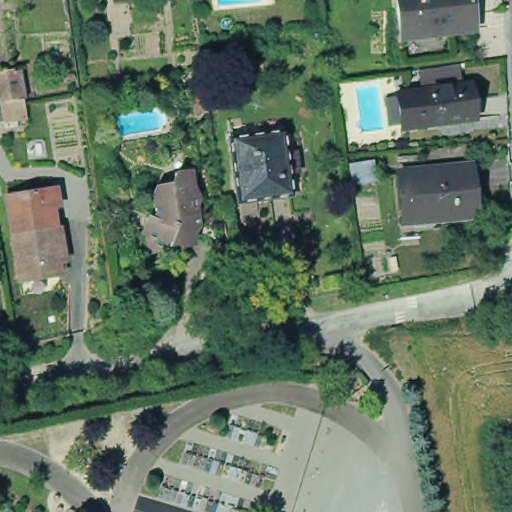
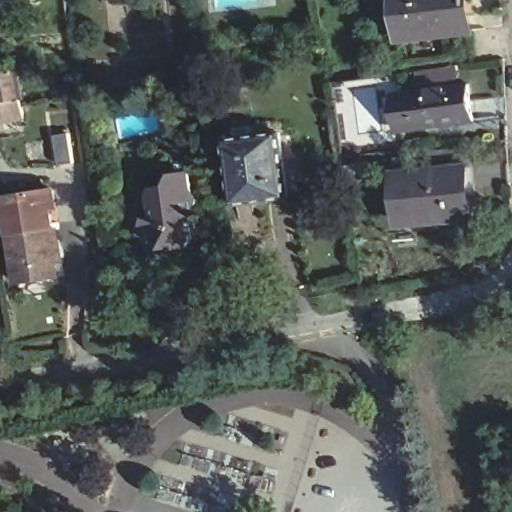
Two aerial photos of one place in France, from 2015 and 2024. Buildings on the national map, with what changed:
unchanged [(466,27),(398,35),(394,0),(467,0),(463,1),(466,27)]
unchanged [(2,126),(0,118),(0,78),(15,76),(20,106),(21,105),(24,123),(2,126)]
unchanged [(398,95),(405,93),(473,85),(477,121),(451,124),(451,122),(410,128),(403,129),(398,95)]
unchanged [(288,198),(233,204),(225,140),(280,133),(288,198)]
unchanged [(470,214),(400,220),(395,169),(466,163),(470,214)]
unchanged [(192,183),(192,185),(193,186),(197,193),(197,194),(197,196),(194,202),(196,224),(189,225),(190,230),(190,232),(190,234),(190,237),(189,239),(187,241),(185,242),(184,243),(182,244),(180,244),(177,244),(175,244),(174,243),(147,246),(145,232),(139,229),(146,213),(152,216),(153,211),(150,191),(153,183),(158,186),(167,184),(167,181),(170,171),(190,168),(192,183)]
unchanged [(15,232),(8,193),(57,185),(60,205),(55,206),(57,225),(15,232)]
unchanged [(63,240),(57,241),(62,272),(22,279),(15,232),(57,225),(62,224),(63,240)]

